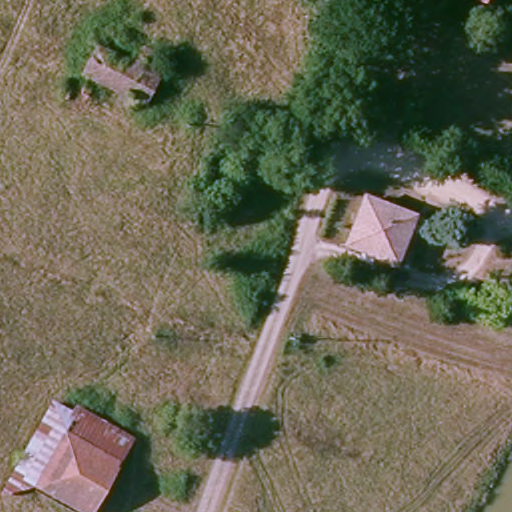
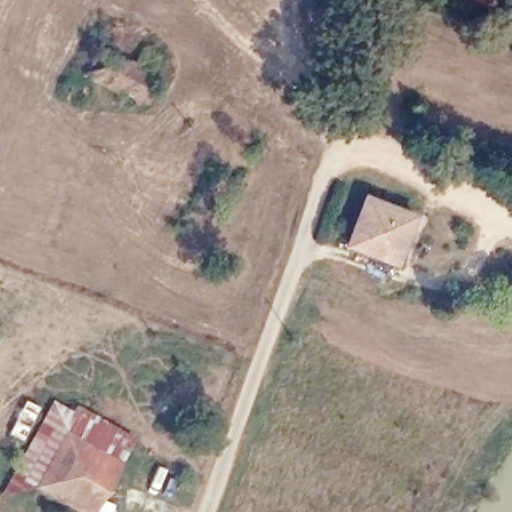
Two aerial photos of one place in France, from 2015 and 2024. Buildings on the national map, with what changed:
unchanged [(172,51),(144,111),(118,99),(124,87),(91,72),(105,42),(136,57),(146,37),(172,51)]
unchanged [(421,213),(402,259),(353,238),(372,192),(421,213)]
unchanged [(134,438),(97,509),(61,491),(20,470),(44,423),(56,399),(134,438)]

